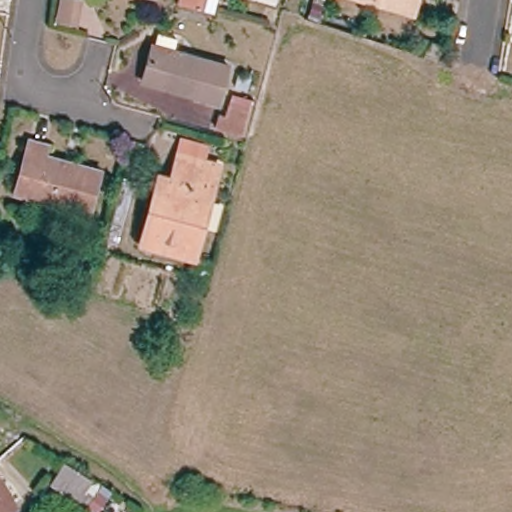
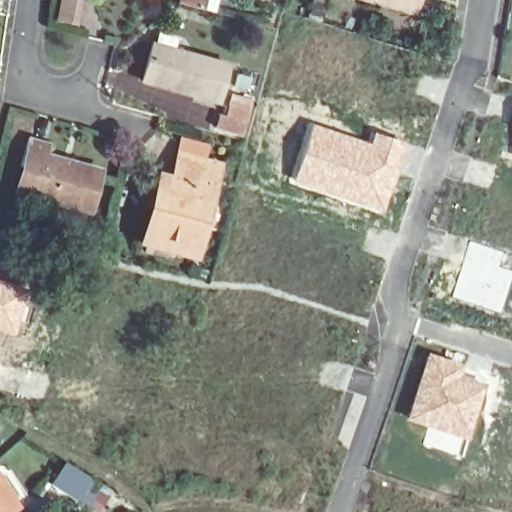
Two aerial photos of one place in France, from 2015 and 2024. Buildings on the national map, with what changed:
unchanged [(76,23),(60,20),(65,0),(85,0),(76,23)]
unchanged [(203,7),(178,1),(179,0),(205,0),(203,7)]
unchanged [(369,1),(365,0),(412,0),(410,3),(407,12),(369,1)]
unchanged [(213,97),(142,82),(151,47),(156,48),(160,36),(180,41),(179,53),(222,62),(213,97)]
unchanged [(247,142),(210,131),(214,109),(222,110),(226,95),(257,103),(247,142)]
new [(369,143),(373,133),(403,143),(381,213),(290,182),(310,123),(369,143)]
unchanged [(21,186),(26,168),(21,166),(29,134),(53,140),(51,156),(106,170),(95,212),(53,202),(20,194),(21,186)]
unchanged [(154,177),(161,178),(167,179),(173,153),(210,161),(187,256),(146,245),(138,243),(154,177)]
new [(34,290),(16,337),(0,331),(0,279),(34,290)]
new [(457,375),(484,383),(465,441),(404,421),(426,352),(461,365),(457,375)]
unchanged [(62,512),(43,498),(70,462),(94,475),(67,512),(62,512)]
unchanged [(90,512),(83,507),(102,481),(112,488),(96,512),(90,512)]
unchanged [(7,504),(0,509),(0,493),(7,504)]

